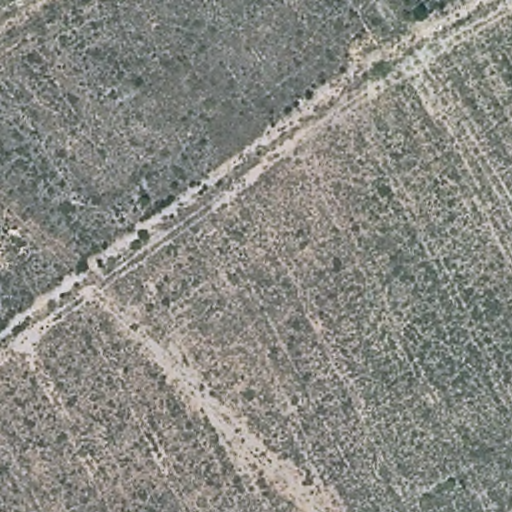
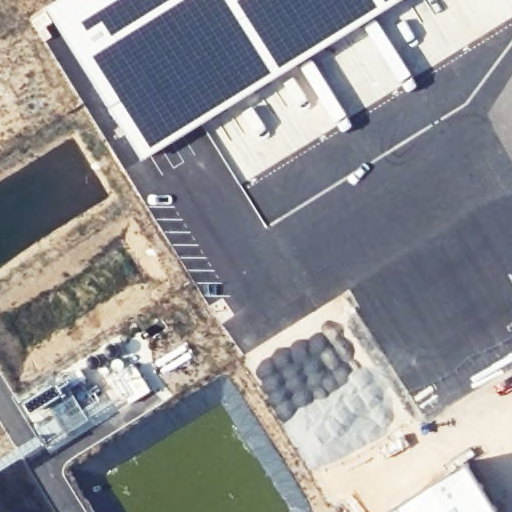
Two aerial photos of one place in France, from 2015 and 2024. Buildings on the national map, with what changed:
new [(395,57),(394,56),(391,58),(395,64),(390,66),(364,25),(143,160),(110,109),(47,7),(58,0),(402,0),(376,17),(399,54),(395,57)]
new [(499,512),(387,512),(467,462),(499,512)]

